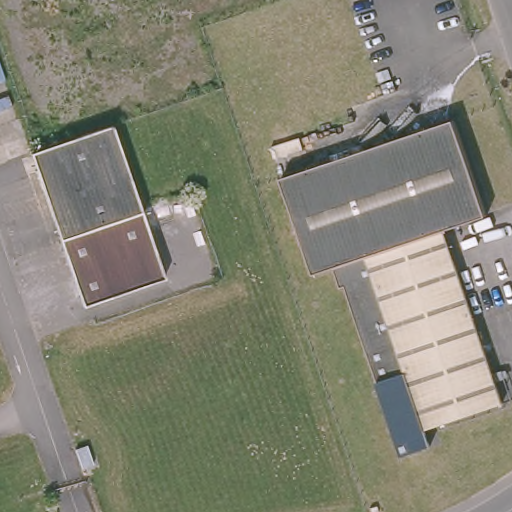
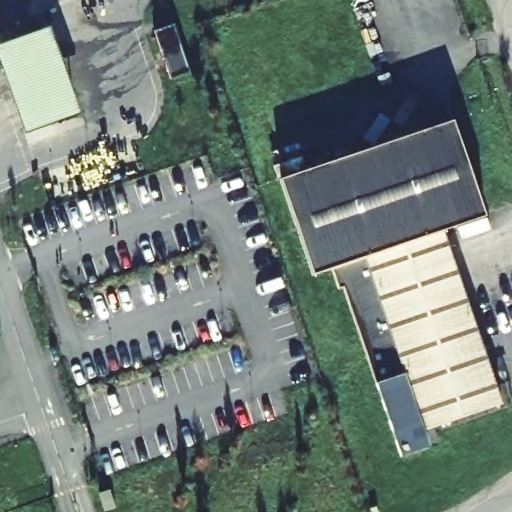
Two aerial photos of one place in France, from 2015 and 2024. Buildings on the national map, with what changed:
unchanged [(174,21),(191,70),(171,77),(154,28),(174,21)]
new [(49,24),(81,112),(25,133),(0,66),(0,43),(49,24)]
unchanged [(454,118),(480,192),(488,215),(443,230),(503,404),(427,430),(432,447),(402,457),(344,285),(339,287),(334,267),(314,274),(306,251),(281,177),(454,118)]
demolished [(108,128),(162,276),(82,307),(29,157),(108,128)]

